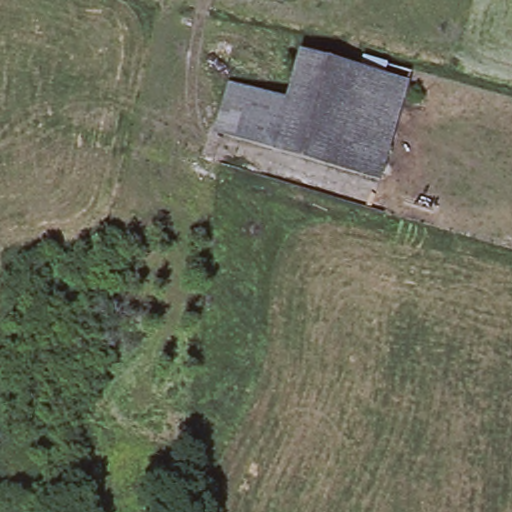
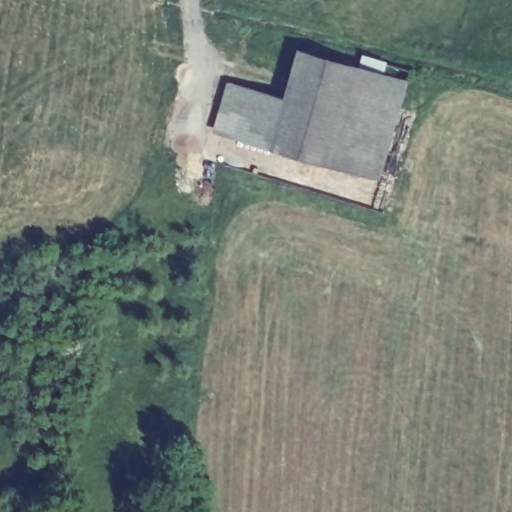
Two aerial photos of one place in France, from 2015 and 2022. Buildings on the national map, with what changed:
unchanged [(225,78),(249,84),(253,61),(288,71),(291,47),(408,77),(381,183),(214,138),(225,78)]

